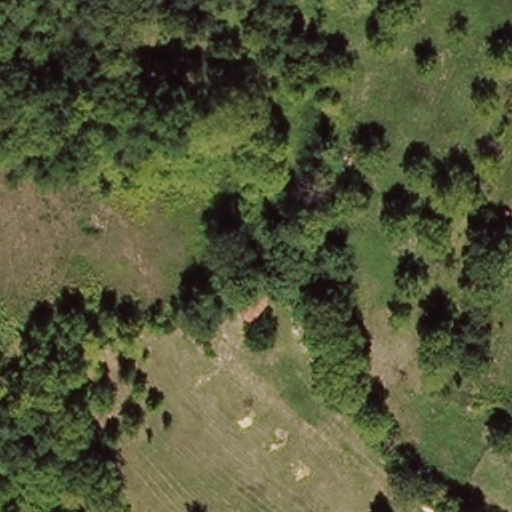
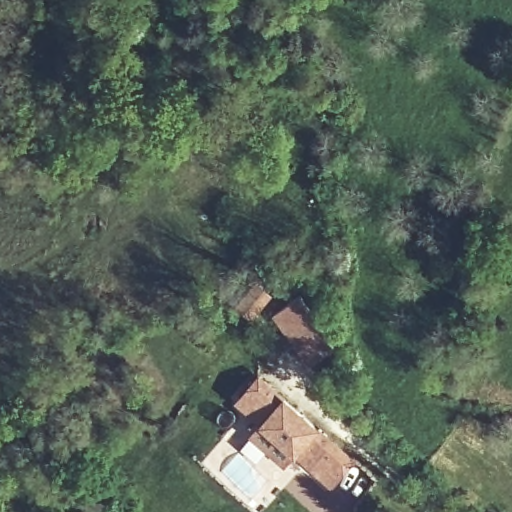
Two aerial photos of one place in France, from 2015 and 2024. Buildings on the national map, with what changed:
unchanged [(272,293),(252,317),(233,300),(256,278),(272,293)]
new [(307,366),(272,316),(298,298),(335,346),(307,366)]
new [(331,490),(294,455),(285,465),(250,433),(259,422),(235,400),(257,374),(286,397),(322,427),(356,459),(331,490)]

